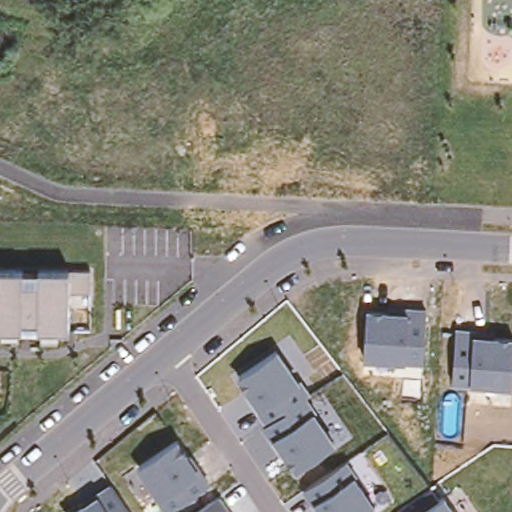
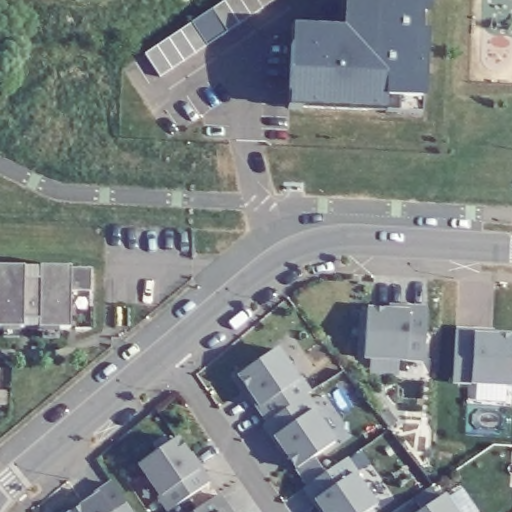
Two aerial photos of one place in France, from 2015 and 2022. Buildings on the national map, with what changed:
new [(145,55),(225,0),(276,0),(160,78),(145,55)]
new [(292,93),(293,48),(304,47),(305,30),(345,31),(346,0),(422,0),(421,20),(417,20),(415,35),(420,36),(416,113),(300,108),(301,94),(292,93)]
unchanged [(70,293),(70,330),(59,330),(59,338),(40,337),(40,330),(21,330),(20,337),(2,337),(2,330),(0,330),(0,270),(69,270),(89,270),(90,292),(70,293)]
unchanged [(422,364),(364,360),(367,310),(392,311),(392,305),(427,307),(422,364)]
unchanged [(479,328),(477,335),(512,337),(512,388),(470,385),(452,385),(457,327),(479,328)]
unchanged [(277,348),(311,397),(307,401),(335,444),(292,473),(262,425),(264,423),(237,376),(277,348)]
new [(388,412),(397,424),(389,430),(380,418),(388,412)]
unchanged [(179,437),(210,482),(167,511),(136,466),(179,437)]
unchanged [(345,460),(377,506),(368,512),(320,512),(305,489),(345,460)]
unchanged [(131,512),(70,512),(98,492),(110,483),(131,512)]
unchanged [(237,512),(195,512),(224,493),(232,506),(237,512)]
unchanged [(443,499),(452,512),(424,512),(443,499)]

